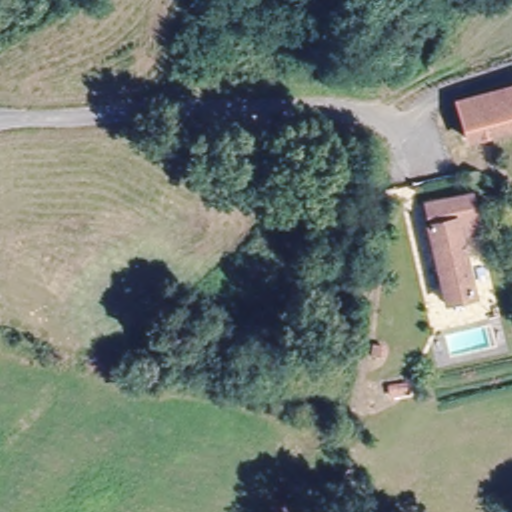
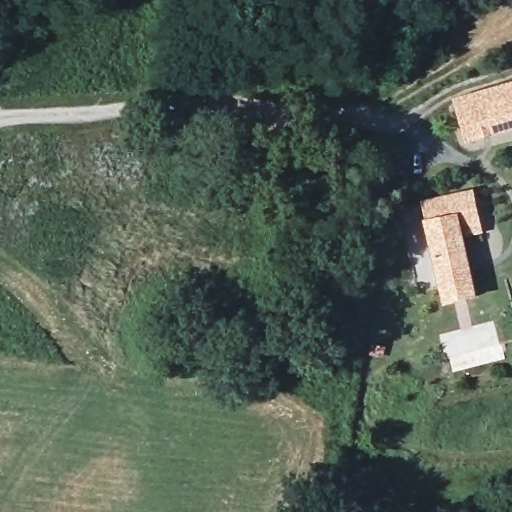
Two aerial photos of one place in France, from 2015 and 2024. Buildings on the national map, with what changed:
unchanged [(512,85),(512,125),(462,137),(454,99),(512,85)]
unchanged [(420,199),(473,191),(477,218),(423,222),(420,199)]
unchanged [(477,218),(480,237),(467,239),(473,282),(433,287),(423,222),(477,218)]

